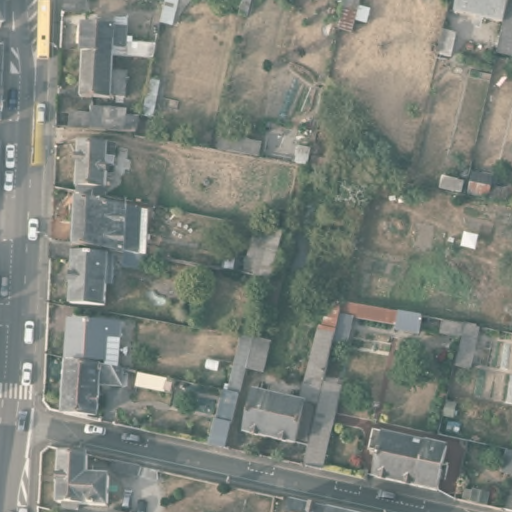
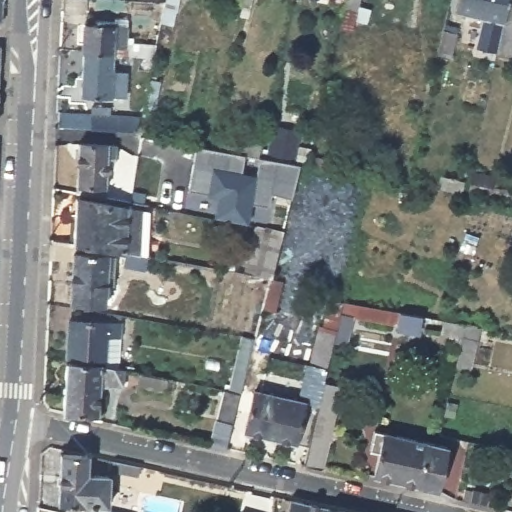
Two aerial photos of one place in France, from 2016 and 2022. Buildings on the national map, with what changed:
unchanged [(0,0),(4,0),(3,22),(0,21),(0,0)]
unchanged [(86,11),(63,9),(63,0),(86,0),(86,11)]
unchanged [(174,25),(161,21),(166,0),(180,0),(174,25)]
unchanged [(248,12),(241,11),(244,0),(251,0),(248,12)]
unchanged [(355,30),(339,26),(346,0),(361,0),(355,30)]
unchanged [(509,34),(507,38),(502,37),(505,21),(457,11),(460,0),(511,0),(510,1),(512,1),(512,35),(509,34)]
unchanged [(86,23),(99,24),(100,19),(116,19),(116,16),(129,17),(128,46),(116,45),(116,52),(84,49),(86,23)]
unchanged [(452,30),(447,54),(434,51),(440,27),(452,30)]
unchanged [(238,29),(236,36),(231,35),(232,28),(238,29)]
unchanged [(0,82),(0,44),(1,44),(0,82)]
unchanged [(116,52),(115,61),(119,61),(119,87),(117,87),(116,94),(111,93),(111,97),(81,95),(84,49),(116,52)]
unchanged [(283,53),(282,60),(276,59),(278,52),(283,53)]
unchanged [(74,126),(75,107),(88,108),(88,107),(106,107),(106,114),(136,115),(133,129),(74,126)]
unchanged [(80,132),(111,133),(111,139),(118,139),(117,153),(111,153),(110,176),(124,176),(138,180),(137,190),(78,179),(80,132)]
unchanged [(204,147),(207,135),(227,139),(228,135),(264,142),(265,139),(312,149),(306,167),(204,147)]
new [(291,197),(271,192),(268,205),(252,202),(248,223),(212,218),(218,197),(207,195),(207,193),(189,190),(196,146),(204,147),(298,165),(291,197)]
unchanged [(444,176),(468,182),(472,173),(498,178),(497,186),(512,189),(512,195),(509,206),(441,189),(444,176)]
unchanged [(77,184),(133,195),(130,216),(123,216),(123,218),(106,216),(104,230),(128,232),(126,242),(109,239),(80,235),(74,233),(77,184)]
unchanged [(251,277),(253,270),(245,268),(255,220),(274,223),(263,271),(274,273),(268,301),(254,298),(259,279),(251,277)]
unchanged [(74,233),(80,235),(79,242),(109,245),(109,239),(126,242),(146,245),(144,259),(108,253),(108,256),(114,257),(114,269),(109,269),(107,295),(72,293),(74,249),(50,247),(52,228),(74,233)]
unchanged [(296,441),(295,443),(245,431),(255,387),(298,396),(315,322),(320,322),(327,296),(342,299),(345,300),(343,312),(326,380),(342,383),(327,443),(322,468),(306,465),(310,445),(296,441)]
unchanged [(345,300),(423,314),(420,330),(399,326),(399,322),(343,312),(345,300)]
unchanged [(456,365),(462,337),(438,332),(441,316),(482,325),(477,348),(473,368),(456,365)]
unchanged [(71,320),(122,323),(119,366),(106,365),(106,361),(68,357),(71,320)]
unchanged [(273,345),(267,373),(249,370),(242,395),(230,392),(234,376),(242,339),(256,342),(273,345)]
unchanged [(68,362),(106,365),(119,366),(125,366),(125,382),(102,383),(100,414),(64,412),(68,362)]
unchanged [(217,423),(234,427),(227,452),(211,449),(217,423)]
unchanged [(380,475),(385,450),(376,448),(380,428),(454,444),(444,489),(380,475)]
unchanged [(92,474),(113,474),(112,504),(83,504),(83,509),(69,509),(69,504),(62,504),(64,454),(92,454),(93,454),(92,474)]
unchanged [(166,481),(142,476),(140,482),(130,479),(131,474),(115,469),(117,459),(168,471),(166,481)]
unchanged [(332,504),(365,512),(286,512),(289,493),(332,504)]

